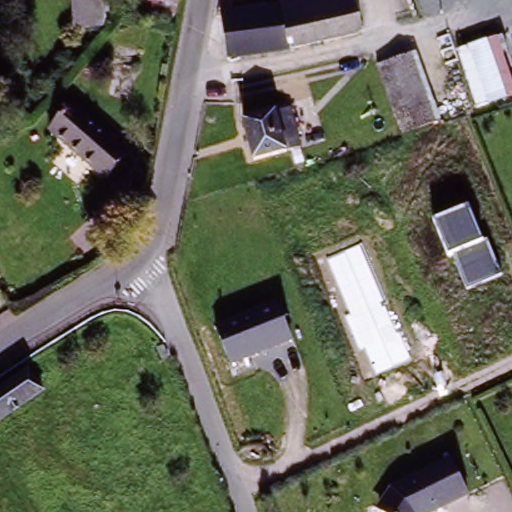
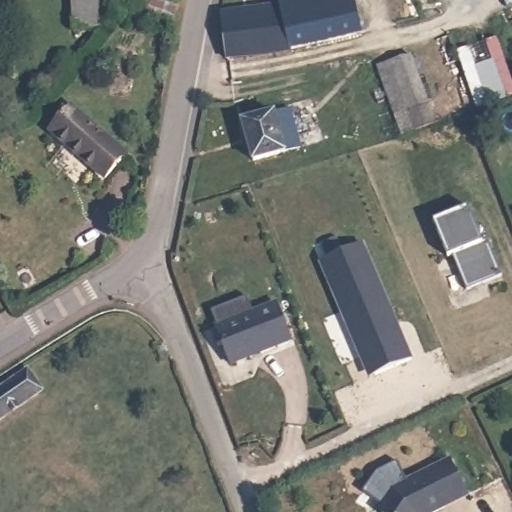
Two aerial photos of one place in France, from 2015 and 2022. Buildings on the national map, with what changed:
unchanged [(111,17),(102,18),(104,31),(74,33),(72,0),(110,0),(111,17)]
unchanged [(143,0),(180,0),(177,14),(142,7),(143,0)]
unchanged [(286,20),(282,1),(282,0),(357,0),(357,3),(286,20)]
unchanged [(362,32),(268,51),(238,57),(238,56),(232,13),(282,1),(286,20),(357,3),(362,32)]
unchanged [(415,59),(440,121),(441,124),(408,137),(405,131),(382,72),(415,59)]
unchanged [(260,160),(251,162),(245,119),(272,114),(288,111),(295,150),(295,155),(280,157),(260,160)]
unchanged [(132,163),(111,185),(60,135),(81,112),(132,163)]
unchanged [(482,246),(487,243),(501,278),(467,292),(453,257),(447,259),(433,224),(469,210),(482,246)]
new [(365,244),(415,360),(368,380),(320,264),(365,244)]
unchanged [(276,303),(291,342),(230,365),(216,325),(276,303)]
unchanged [(42,382),(0,415),(0,379),(26,359),(42,382)]
unchanged [(436,512),(372,512),(393,490),(450,463),(466,497),(436,512)]

